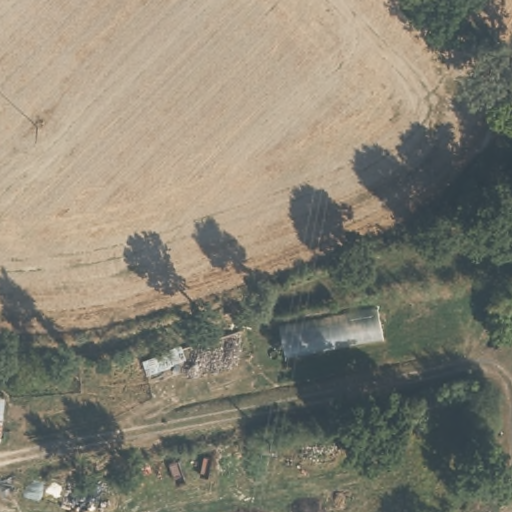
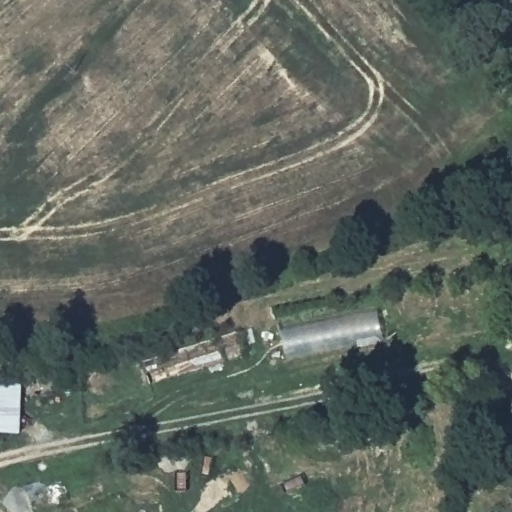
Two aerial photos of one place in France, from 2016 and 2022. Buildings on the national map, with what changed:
unchanged [(238,331),(244,354),(168,377),(160,354),(238,331)]
new [(23,385),(20,435),(0,434),(0,382),(23,385)]

